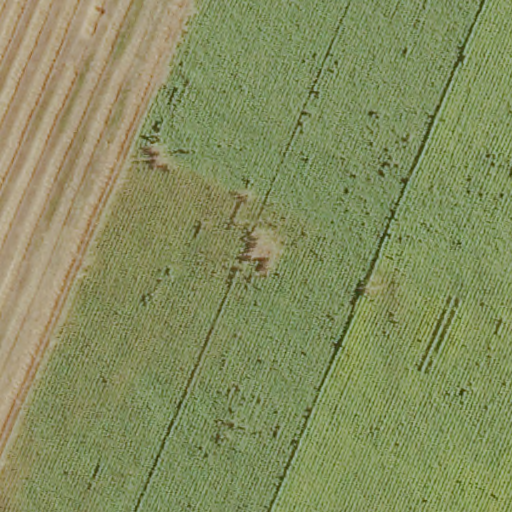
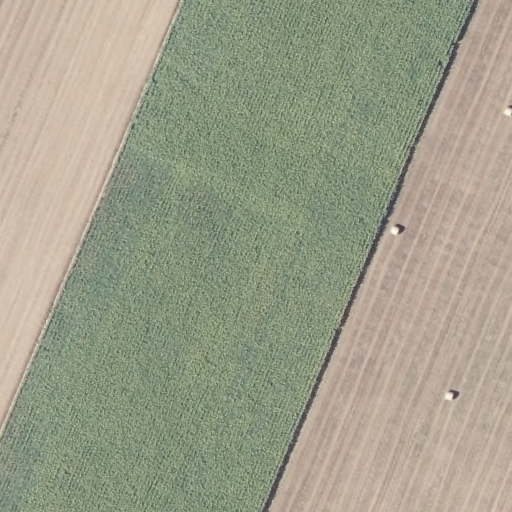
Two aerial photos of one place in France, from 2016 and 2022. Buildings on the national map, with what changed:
[]

